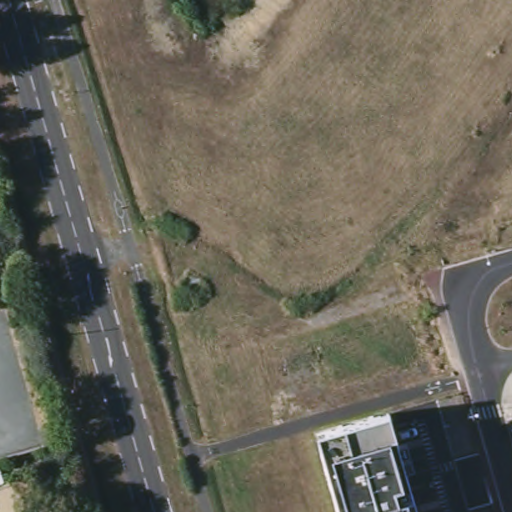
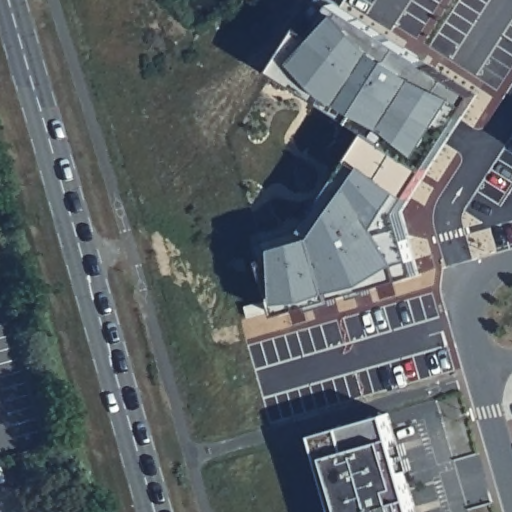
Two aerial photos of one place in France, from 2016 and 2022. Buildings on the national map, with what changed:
new [(358,121),(356,120),(278,68),(304,28),(315,35),(336,3),(476,94),(430,166),(358,121)]
new [(261,242),(306,227),(302,223),(331,174),(313,163),(323,146),(338,154),(358,121),(430,166),(439,172),(427,193),(416,187),(402,209),(419,274),(371,286),(373,292),(353,297),(352,294),(337,297),(338,302),(311,310),(310,306),(280,314),(261,242)]
unchanged [(316,435),(388,412),(417,512),(338,512),(316,435)]

